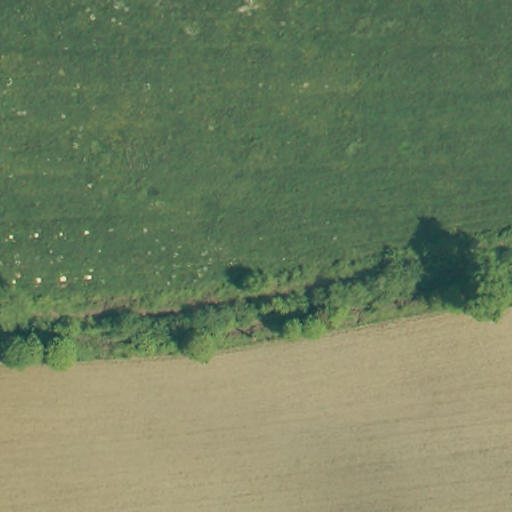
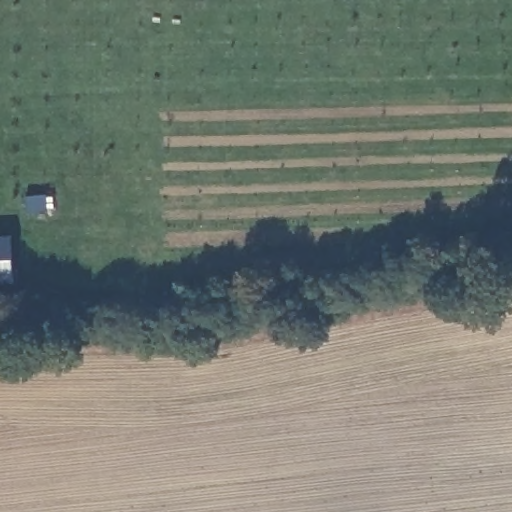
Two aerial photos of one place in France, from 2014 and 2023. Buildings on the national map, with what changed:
new [(16,284),(0,285),(0,237),(13,236),(16,284)]

